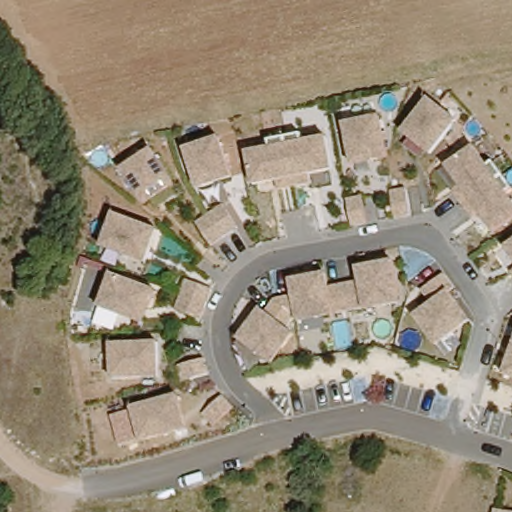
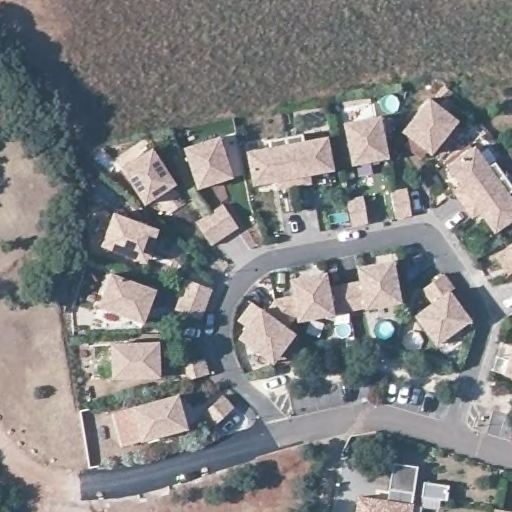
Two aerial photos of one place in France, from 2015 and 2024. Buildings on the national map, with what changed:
unchanged [(431,94),(458,117),(431,148),(402,127),(431,94)]
unchanged [(345,122),(385,116),(392,152),(352,157),(345,122)]
unchanged [(183,145),(225,132),(234,174),(197,185),(183,145)]
unchanged [(247,146),(331,132),(337,166),(252,181),(247,146)]
unchanged [(479,141),(512,189),(512,220),(495,231),(446,163),(479,141)]
unchanged [(121,167),(158,146),(179,182),(143,202),(121,167)]
unchanged [(392,189),(410,187),(412,212),(395,216),(392,189)]
unchanged [(351,200),(366,198),(369,222),(354,226),(351,200)]
unchanged [(221,203),(237,226),(211,242),(197,218),(221,203)]
unchanged [(115,212),(159,228),(150,260),(101,244),(115,212)]
unchanged [(509,276),(495,256),(506,248),(503,245),(512,239),(512,273),(509,276)]
unchanged [(253,303),(261,310),(264,307),(270,311),(277,297),(292,295),(289,277),(332,270),(335,286),(360,281),(358,262),(398,256),(406,301),(366,308),(338,311),(299,317),(289,317),(286,323),(294,328),(274,358),(241,336),(249,326),(241,320),(253,303)]
unchanged [(432,302),(425,285),(449,270),(461,291),(459,296),(474,318),(438,344),(413,314),(432,302)]
unchanged [(114,271),(158,289),(145,321),(99,303),(114,271)]
unchanged [(190,280),(215,290),(203,318),(178,308),(190,280)]
unchanged [(111,341),(159,340),(161,375),(112,376),(111,341)]
unchanged [(512,349),(512,372),(504,369),(512,349)]
unchanged [(181,362),(208,355),(212,371),(185,377),(181,362)]
unchanged [(131,402),(181,391),(191,427),(142,440),(131,402)]
unchanged [(226,392),(237,406),(216,424),(205,412),(226,392)]
new [(413,512),(355,512),(358,496),(389,500),(393,462),(419,465),(415,503),(413,512)]
new [(449,483),(447,498),(422,496),(424,480),(449,483)]

